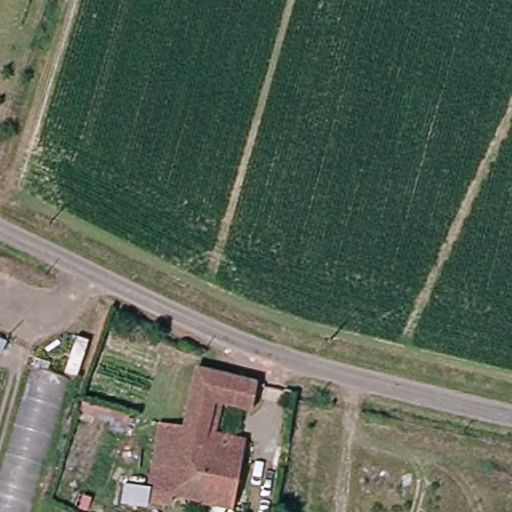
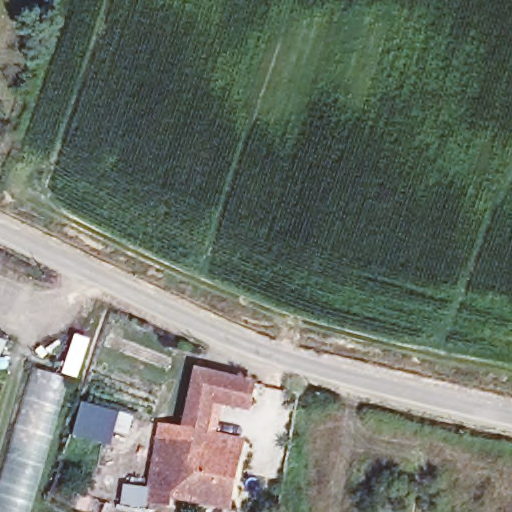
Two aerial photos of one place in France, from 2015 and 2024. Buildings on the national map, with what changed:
unchanged [(154,431),(179,434),(189,371),(245,380),(242,405),(208,400),(199,451),(216,453),(216,451),(238,455),(230,505),(153,495),(150,508),(119,506),(120,483),(148,485),(154,431)]
unchanged [(0,474),(24,378),(63,390),(29,512),(0,512),(0,474)]
new [(128,435),(114,431),(110,445),(74,434),(84,402),(133,416),(128,435)]

